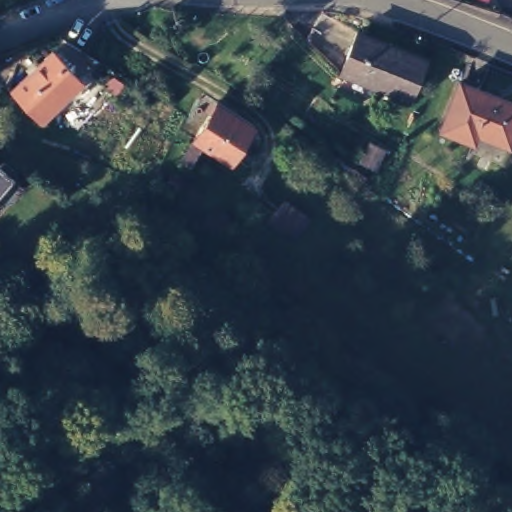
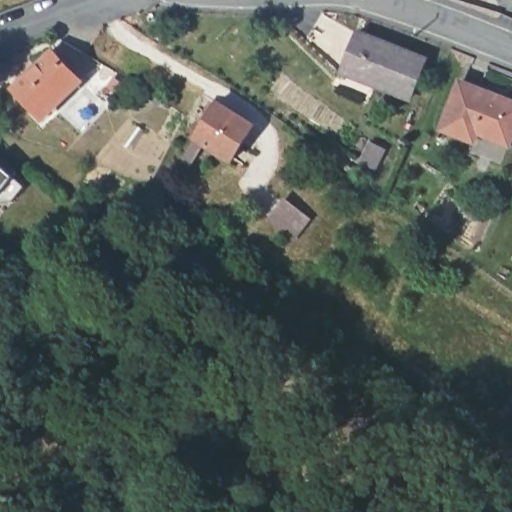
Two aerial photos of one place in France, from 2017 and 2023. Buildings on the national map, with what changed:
unchanged [(357,33),(425,60),(410,97),(342,71),(357,33)]
unchanged [(80,76),(42,113),(13,84),(52,46),(80,76)]
unchanged [(459,77),(512,96),(512,131),(509,139),(477,127),(474,136),(442,124),(459,77)]
unchanged [(185,154),(199,133),(222,97),(258,120),(235,156),(208,139),(195,160),(185,154)]
unchanged [(385,150),(376,169),(362,162),(370,143),(385,150)]
unchanged [(0,183),(0,155),(14,167),(0,183)]
unchanged [(285,202),(307,219),(292,237),(270,220),(285,202)]
unchanged [(500,438),(512,449),(512,479),(485,455),(500,438)]

